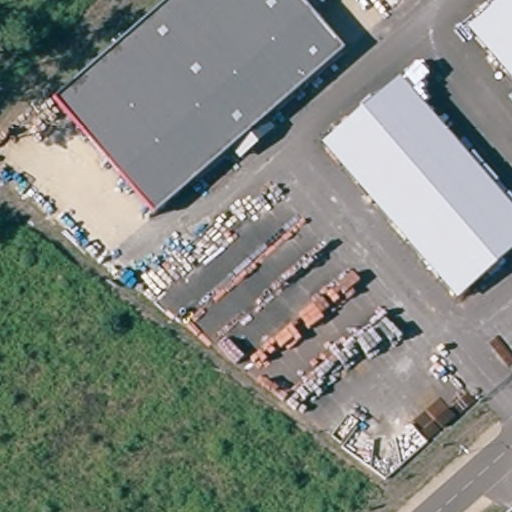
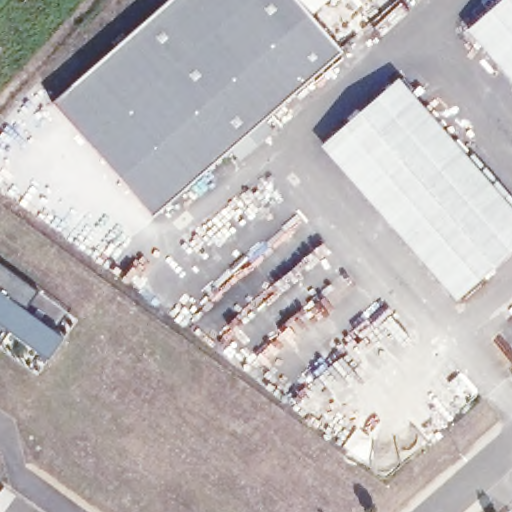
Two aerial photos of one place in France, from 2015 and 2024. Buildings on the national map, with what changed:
unchanged [(169,0),(326,0),(310,14),(342,51),(154,215),(54,101),(169,0)]
unchanged [(512,80),(467,27),(500,0),(512,0),(512,80)]
unchanged [(512,208),(512,251),(457,300),(320,145),(399,78),(512,208)]
new [(37,291),(25,308),(66,338),(50,362),(9,332),(0,344),(0,264),(37,291)]

